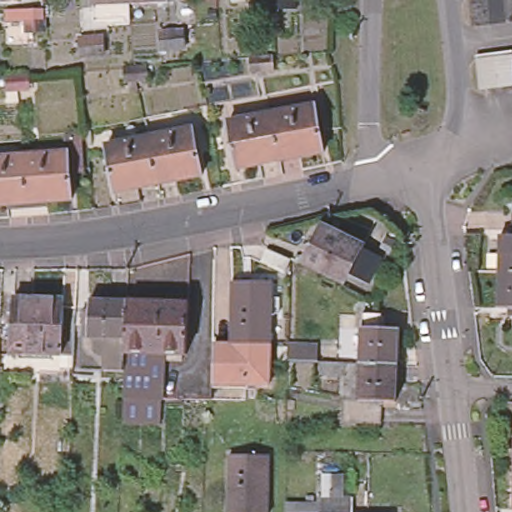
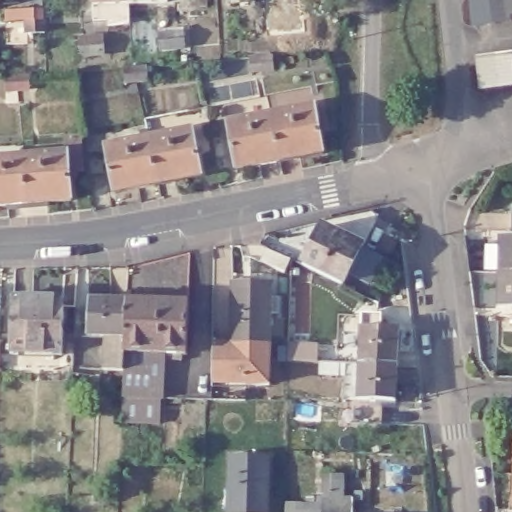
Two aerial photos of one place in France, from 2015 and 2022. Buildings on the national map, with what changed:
unchanged [(27,22),(28,10),(28,0),(46,0),(47,10),(47,23),(47,34),(27,34),(27,22)]
unchanged [(93,0),(166,0),(167,2),(131,5),(93,6),(93,0)]
unchanged [(193,0),(207,0),(193,2),(193,0)]
unchanged [(467,22),(465,0),(512,0),(512,17),(467,22)]
unchanged [(255,20),(267,19),(278,17),(280,34),(275,35),(268,35),(258,36),(255,20)]
unchanged [(162,32),(169,31),(175,31),(178,31),(184,31),(185,48),(182,48),(175,48),(162,49),(162,32)]
unchanged [(92,39),(95,39),(102,38),(104,55),(92,56),(80,57),(80,40),(84,40),(92,39)]
unchanged [(473,84),(470,53),(512,49),(512,80),(473,84)]
unchanged [(250,60),(262,59),(274,58),(275,72),(263,73),(251,74),(250,60)]
unchanged [(148,67),(150,81),(137,82),(125,84),(124,70),(136,69),(148,67)]
unchanged [(6,79),(18,78),(30,77),(32,91),(19,91),(7,92),(6,79)]
unchanged [(280,157),(272,120),(270,110),(315,102),(317,116),(324,150),(280,157)]
unchanged [(272,120),(280,157),(237,165),(227,124),(227,118),(270,110),(272,120)]
unchanged [(102,141),(137,135),(135,132),(135,127),(143,125),(145,131),(145,133),(164,130),(188,125),(188,127),(197,171),(153,180),(110,188),(102,141)]
unchanged [(62,196),(18,200),(15,152),(59,148),(62,196)]
unchanged [(0,202),(0,153),(15,152),(18,200),(0,202)]
unchanged [(339,266),(334,276),(294,256),(314,215),(355,235),(352,240),(370,249),(361,268),(348,262),(345,269),(339,266)]
unchanged [(512,232),(512,271),(502,270),(502,232),(512,232)]
unchanged [(500,315),(500,306),(502,270),(512,271),(512,315),(500,315)]
unchanged [(267,281),(267,341),(229,341),(227,281),(267,281)]
unchanged [(12,295),(62,297),(60,351),(10,350),(12,295)]
unchanged [(0,350),(0,299),(2,299),(0,350)]
unchanged [(122,401),(123,375),(98,373),(100,342),(87,341),(89,303),(127,305),(188,308),(185,359),(182,359),(181,367),(166,366),(165,402),(162,403),(162,425),(122,423),(122,401)]
unchanged [(347,386),(347,357),(361,358),(361,320),(363,320),(363,308),(382,308),(382,321),(400,321),(399,359),(398,394),(383,393),(383,416),(347,415),(347,386)]
unchanged [(267,341),(267,381),(212,380),(212,341),(229,341),(267,341)]
unchanged [(263,452),(265,512),(229,512),(227,453),(263,452)]
unchanged [(323,506),(351,505),(351,512),(323,512),(323,506)]

